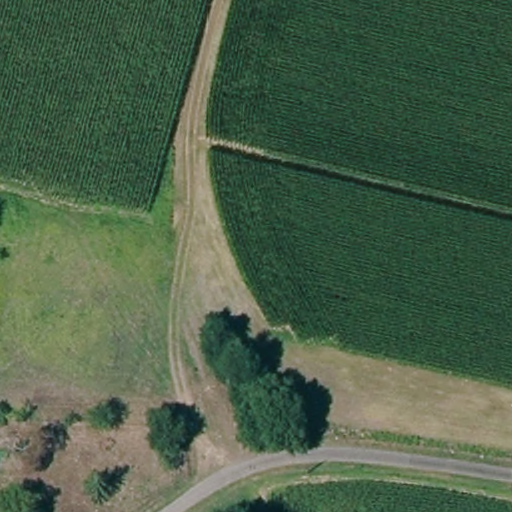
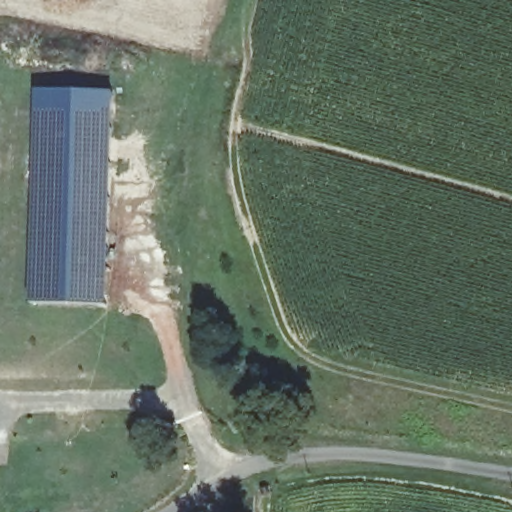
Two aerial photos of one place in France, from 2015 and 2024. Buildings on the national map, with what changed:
new [(114,92),(108,305),(31,303),(36,91),(114,92)]
demolished [(155,460),(144,458),(147,445),(158,447),(155,460)]
demolished [(143,498),(118,493),(122,470),(143,473),(143,498)]

